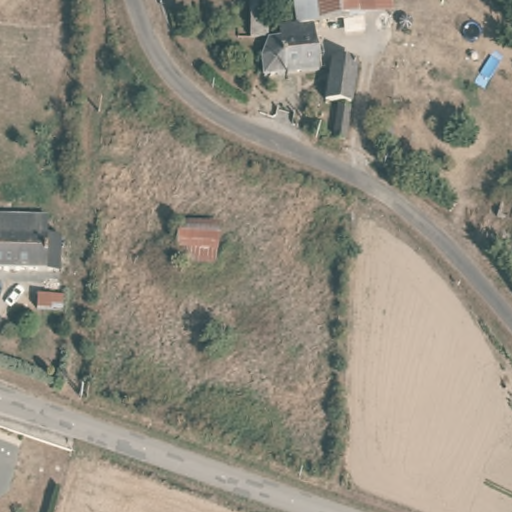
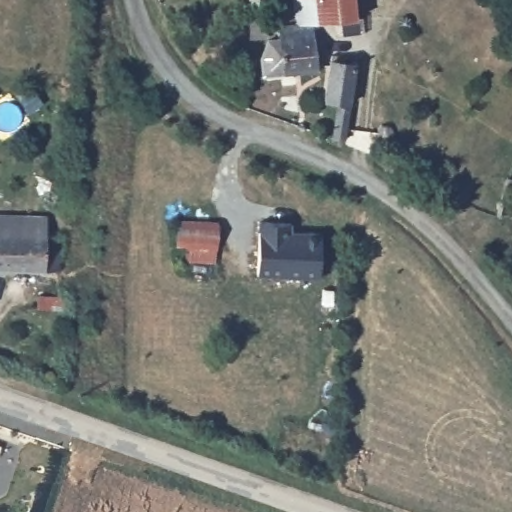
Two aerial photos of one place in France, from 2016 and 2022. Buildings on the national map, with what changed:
unchanged [(254,33),(254,0),(271,0),(270,33),(254,33)]
unchanged [(294,23),(294,0),(353,0),(354,20),(312,21),(294,23)]
unchanged [(294,23),(312,21),(312,44),(320,44),(320,66),(275,70),(275,41),(274,21),(294,23)]
unchanged [(359,74),(349,106),(321,101),(327,69),(359,74)]
unchanged [(347,116),(341,147),(326,143),(331,113),(347,116)]
unchanged [(171,214),(218,218),(217,266),(169,266),(171,214)]
unchanged [(0,272),(0,215),(4,215),(2,272),(0,272)]
unchanged [(47,217),(47,235),(62,236),(62,274),(2,272),(4,215),(47,217)]
new [(259,220),(292,221),(292,231),(321,232),(319,278),(258,276),(259,220)]

